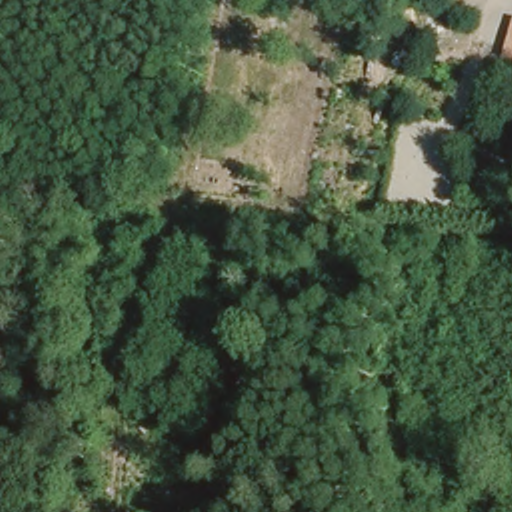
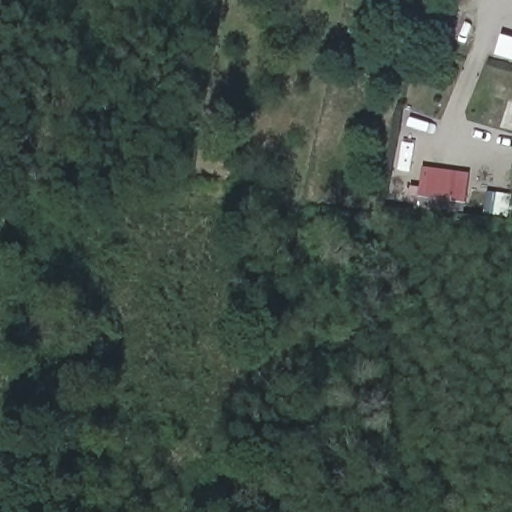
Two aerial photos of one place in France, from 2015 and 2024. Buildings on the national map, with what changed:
unchanged [(512,20),(512,60),(501,57),(512,20)]
new [(421,167),(468,175),(467,204),(418,197),(421,167)]

